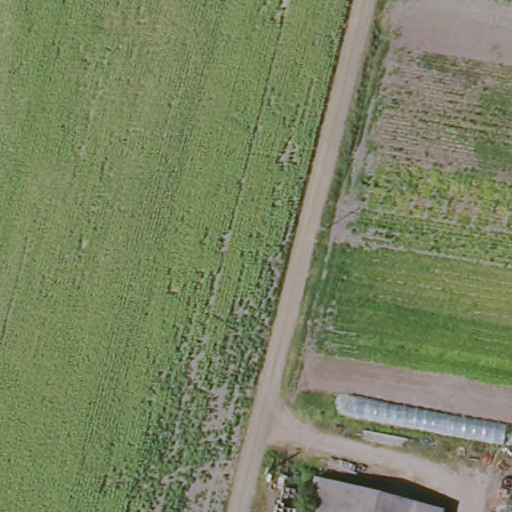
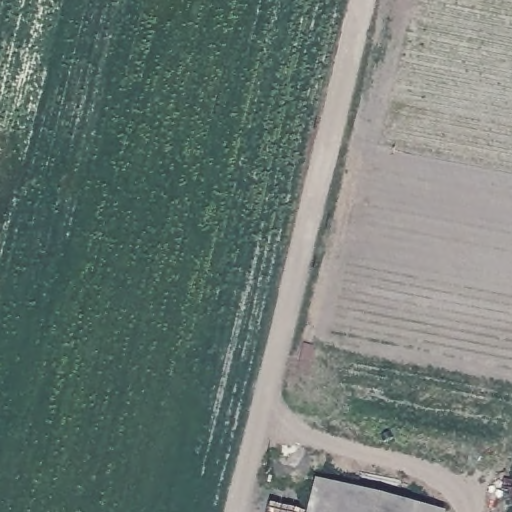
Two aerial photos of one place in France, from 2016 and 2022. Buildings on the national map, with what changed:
unchanged [(309,512),(316,485),(420,512),(309,512)]

